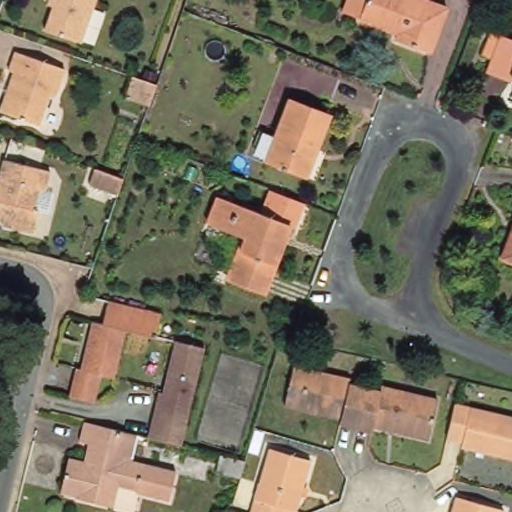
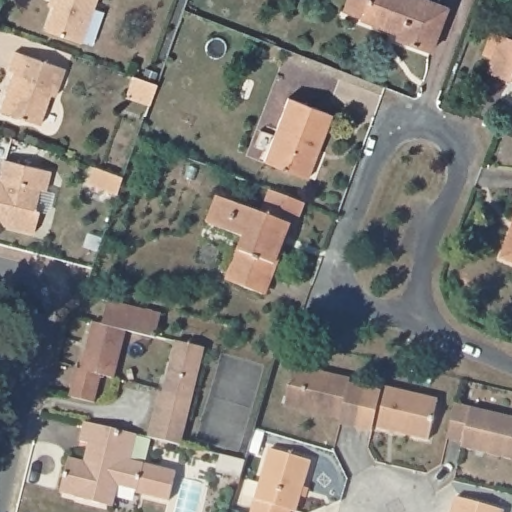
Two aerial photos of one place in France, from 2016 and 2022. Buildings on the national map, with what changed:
unchanged [(79,41),(42,29),(52,0),(93,0),(79,41)]
unchanged [(446,9),(430,51),(396,37),(397,34),(360,19),(366,0),(424,0),(446,9)]
unchanged [(507,86),(484,77),(490,62),(483,59),(491,37),(512,44),(512,87),(507,86)]
unchanged [(67,74),(57,101),(52,99),(42,129),(2,115),(16,76),(11,75),(17,56),(67,74)]
unchanged [(156,81),(159,82),(152,100),(129,92),(135,74),(156,81)]
unchanged [(331,114),(315,155),(306,177),(265,161),(288,98),(327,112),(331,114)]
unchanged [(51,175),(46,194),(40,192),(35,209),(37,214),(31,236),(2,227),(0,223),(0,179),(4,162),(51,175)]
unchanged [(103,169),(125,176),(119,195),(90,185),(97,167),(103,169)]
unchanged [(209,222),(219,196),(290,225),(262,293),(227,279),(245,236),(209,222)]
unchanged [(501,261),(512,231),(512,265),(501,261)]
unchanged [(102,329),(108,305),(161,316),(156,341),(126,335),(116,382),(102,378),(96,407),(71,402),(77,372),(82,373),(91,327),(102,329)]
unchanged [(161,392),(164,392),(175,341),(205,347),(184,446),(157,439),(151,437),(161,392)]
unchanged [(338,428),(340,423),(283,411),(293,371),(348,383),(347,388),(364,392),(355,432),(338,428)]
unchanged [(379,396),(380,391),(436,404),(427,444),(372,431),(370,436),(355,432),(364,392),(379,396)]
unchanged [(512,420),(512,463),(465,452),(466,447),(450,443),(458,407),(512,420)]
unchanged [(85,461),(87,452),(91,452),(92,443),(80,441),(84,422),(112,428),(137,434),(131,461),(145,463),(177,471),(170,500),(137,492),(137,491),(118,486),(113,507),(76,498),(77,495),(62,492),(69,457),(85,461)]
unchanged [(296,511),(291,509),(290,512),(250,512),(269,448),(310,460),(296,511)]
unchanged [(239,458),(245,460),(240,477),(216,471),(220,454),(239,458)]
unchanged [(507,508),(506,512),(452,512),(457,496),(507,508)]

